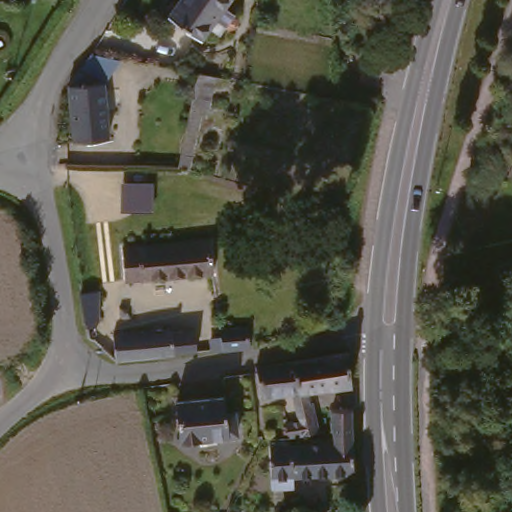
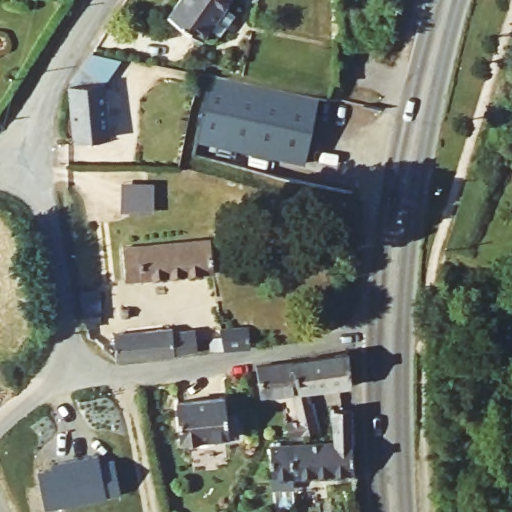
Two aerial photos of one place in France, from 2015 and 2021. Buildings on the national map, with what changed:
unchanged [(215,39),(203,31),(196,42),(162,18),(175,0),(226,0),(218,11),(229,19),(215,39)]
unchanged [(338,3),(367,0),(372,0),(375,45),(341,49),(338,3)]
unchanged [(73,140),(69,91),(68,85),(86,55),(98,61),(84,82),(101,81),(103,81),(108,136),(73,140)]
new [(209,76),(316,96),(303,164),(196,143),(201,117),(208,119),(214,83),(206,82),(209,76)]
unchanged [(214,83),(208,119),(201,117),(191,172),(176,171),(194,82),(214,83)]
new [(121,180),(151,180),(149,209),(121,208),(121,180)]
unchanged [(125,279),(121,245),(208,238),(211,272),(125,279)]
unchanged [(78,297),(95,296),(98,323),(92,324),(93,330),(84,331),(78,297)]
unchanged [(211,351),(210,336),(218,335),(218,330),(247,327),(248,346),(241,348),(211,351)]
unchanged [(106,365),(104,364),(101,340),(159,333),(160,339),(183,335),(186,355),(163,358),(163,360),(106,365)]
unchanged [(283,431),(281,416),(296,416),(293,390),(298,390),(293,360),(346,351),(351,383),(305,390),(306,403),(311,403),(314,431),(296,432),(283,433),(283,431)]
unchanged [(261,395),(254,366),(293,360),(298,390),(293,390),(261,395)]
unchanged [(221,396),(224,420),(233,420),(234,433),(178,438),(175,400),(221,396)]
unchanged [(288,477),(289,488),(268,489),(262,446),(292,443),(326,440),(324,410),(344,407),(345,441),(348,472),(288,477)]
new [(36,472),(53,470),(51,461),(98,452),(100,460),(114,458),(120,491),(105,494),(106,497),(44,509),(36,472)]

